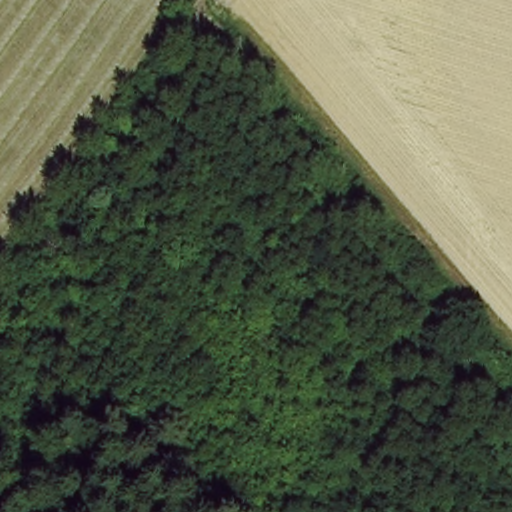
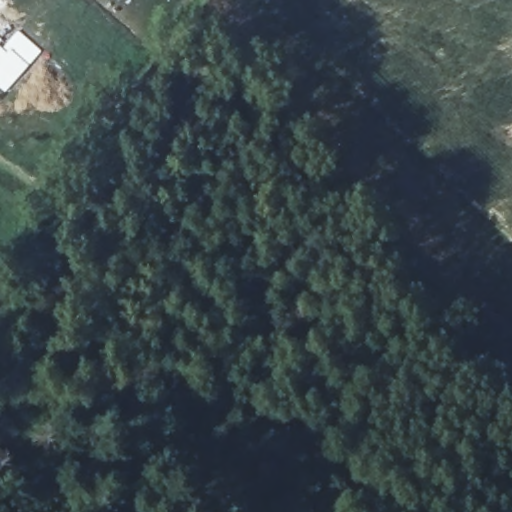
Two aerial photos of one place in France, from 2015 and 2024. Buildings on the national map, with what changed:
new [(18,29),(43,51),(30,66),(5,93),(0,89),(0,39),(4,44),(18,29)]

